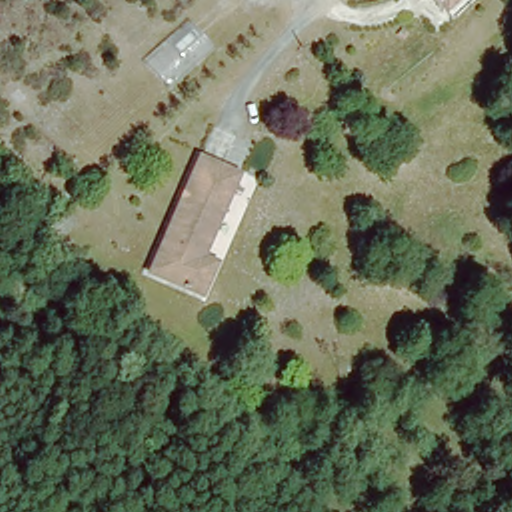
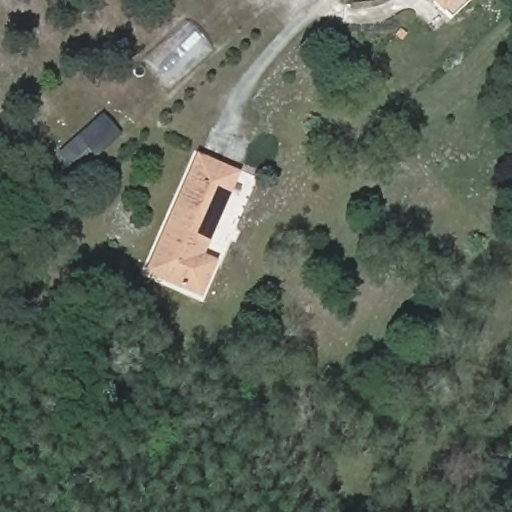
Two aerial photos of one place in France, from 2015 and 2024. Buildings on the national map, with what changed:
unchanged [(442,15),(428,0),(472,0),(450,21),(442,15)]
unchanged [(197,154),(239,171),(204,257),(216,261),(200,300),(146,273),(197,154)]

